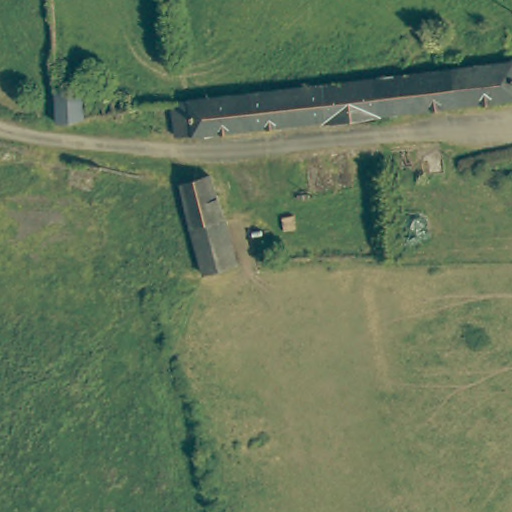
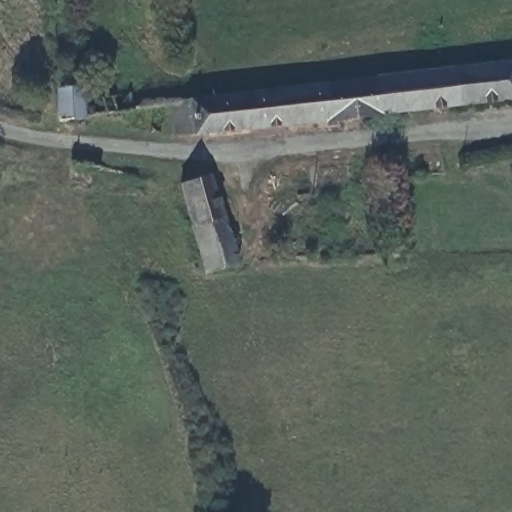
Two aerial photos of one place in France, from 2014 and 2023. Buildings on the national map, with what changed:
unchanged [(357,108),(356,82),(498,66),(512,64),(512,101),(358,120),(357,108)]
unchanged [(80,72),(87,76),(94,120),(65,123),(63,94),(69,93),(67,73),(71,72),(80,72)]
unchanged [(356,82),(357,108),(358,120),(165,142),(160,105),(169,104),(356,82)]
unchanged [(208,175),(219,219),(187,227),(175,182),(208,175)]
unchanged [(187,227),(219,219),(231,270),(201,277),(187,227)]

